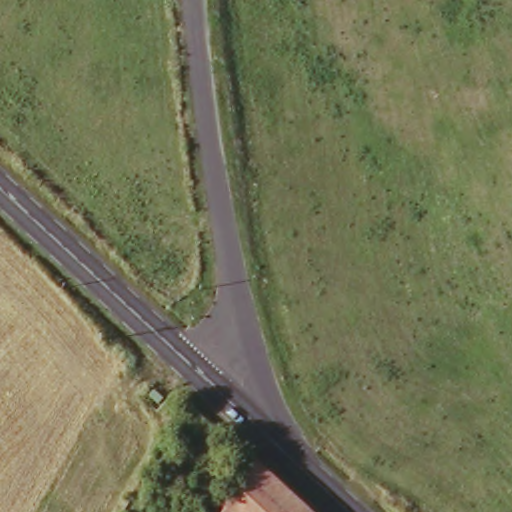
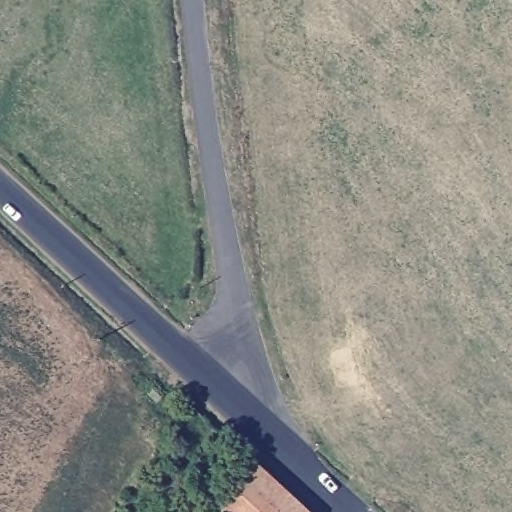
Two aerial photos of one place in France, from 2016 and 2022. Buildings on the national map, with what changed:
unchanged [(304,512),(220,512),(246,458),(304,512)]

